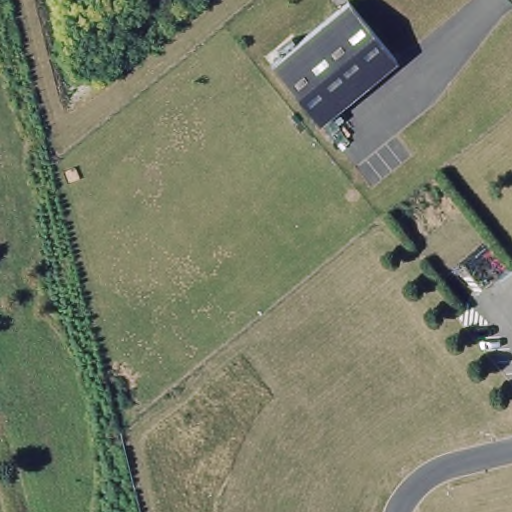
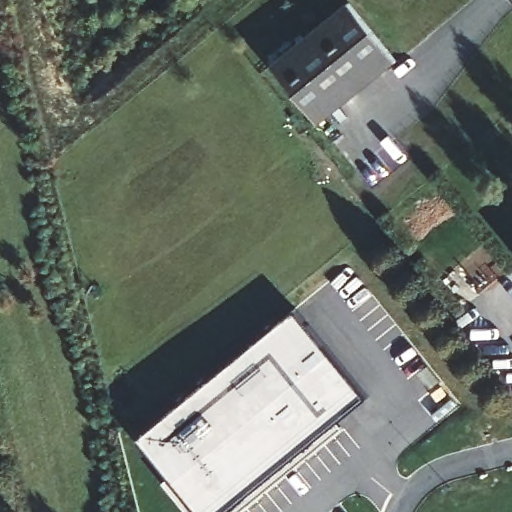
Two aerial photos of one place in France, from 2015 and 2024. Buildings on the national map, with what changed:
unchanged [(349,4),(397,61),(320,125),(271,67),(349,4)]
new [(146,438),(293,315),(362,405),(335,427),(341,432),(241,512),(182,512),(132,446),(142,437),(146,438)]

